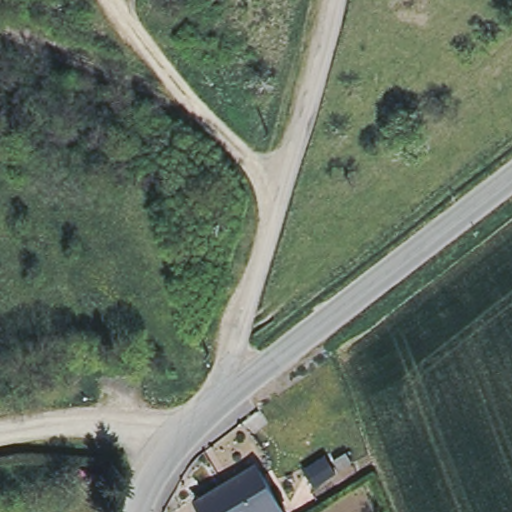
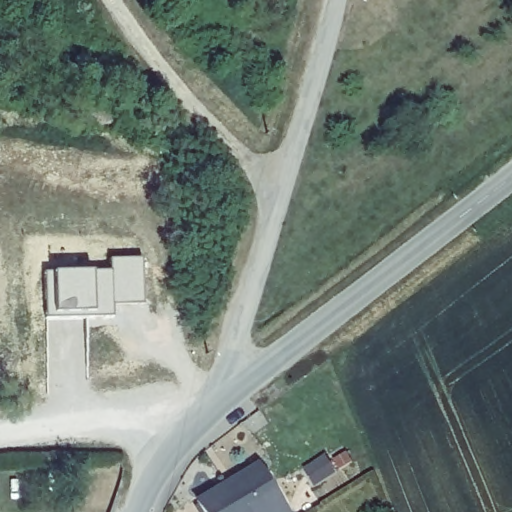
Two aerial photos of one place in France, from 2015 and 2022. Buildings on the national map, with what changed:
new [(112,269),(113,258),(143,258),(146,303),(115,303),(115,315),(47,315),(48,270),(112,269)]
unchanged [(225,489),(257,470),(283,512),(200,512),(193,502),(222,484),(225,489)]

